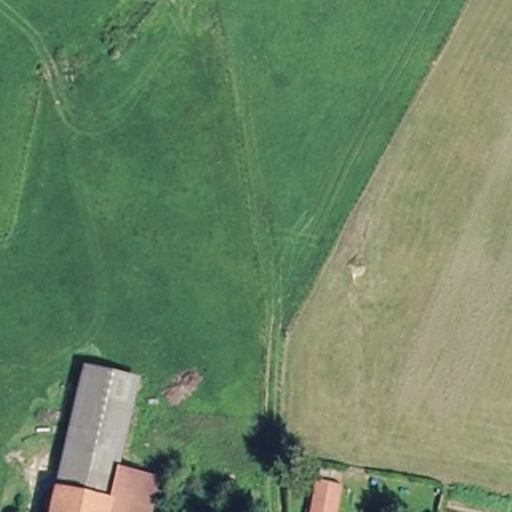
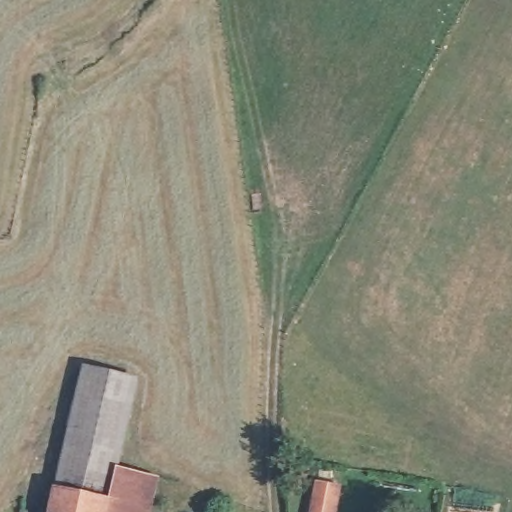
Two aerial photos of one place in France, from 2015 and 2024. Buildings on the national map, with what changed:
unchanged [(75,373),(131,383),(115,470),(150,478),(144,512),(110,512),(111,507),(55,495),(75,373)]
unchanged [(319,485),(342,488),(338,512),(314,512),(319,485)]
unchanged [(111,507),(110,512),(52,512),(55,495),(111,507)]

